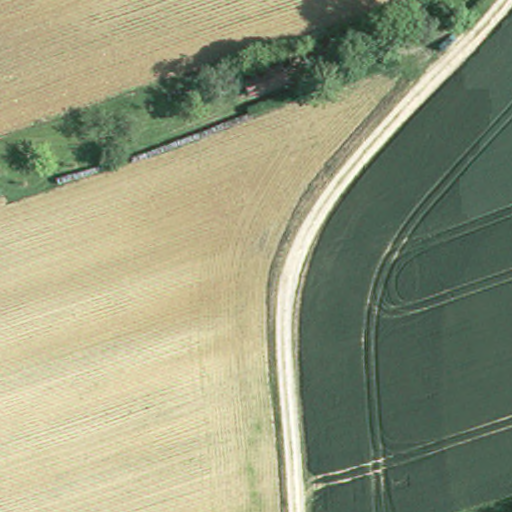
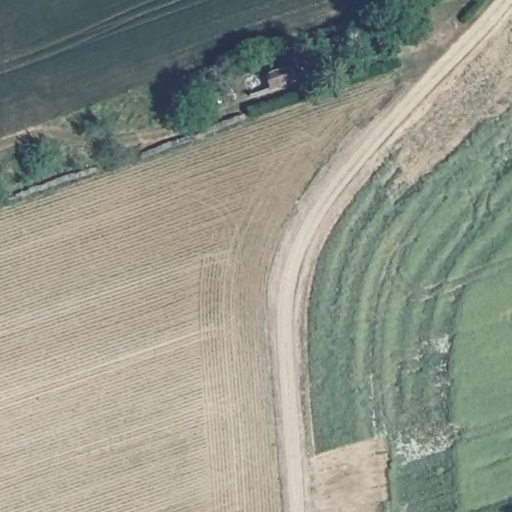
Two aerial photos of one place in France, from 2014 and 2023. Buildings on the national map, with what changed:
unchanged [(184,75),(231,58),(234,69),(240,66),(244,80),(229,84),(227,80),(215,85),(217,90),(192,96),(184,75)]

